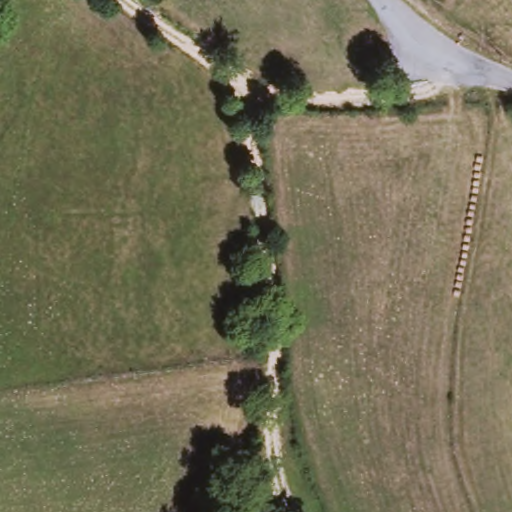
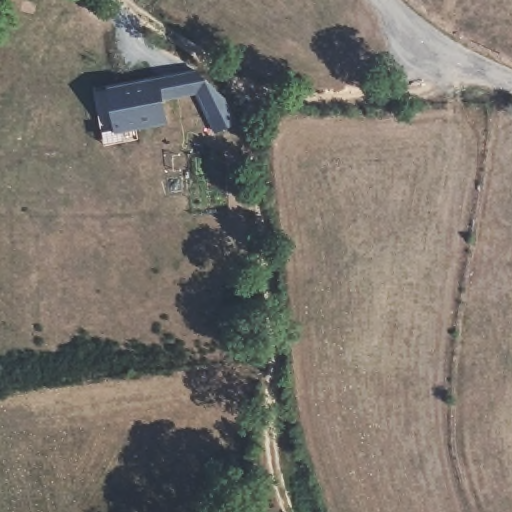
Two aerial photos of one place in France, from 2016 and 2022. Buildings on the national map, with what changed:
new [(107,85),(196,69),(207,79),(212,78),(224,89),(243,122),(216,132),(197,94),(163,99),(169,123),(136,128),(138,138),(106,144),(96,89),(107,85)]

